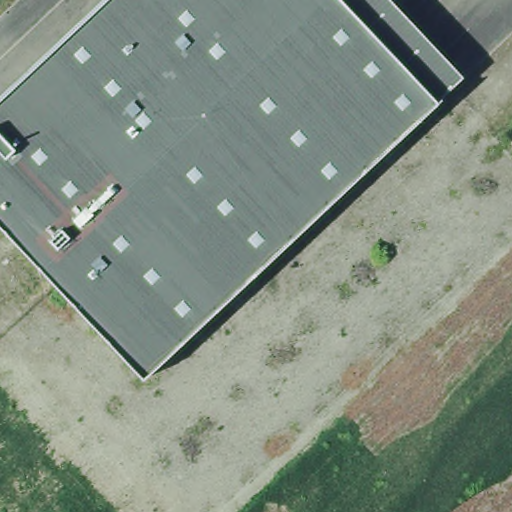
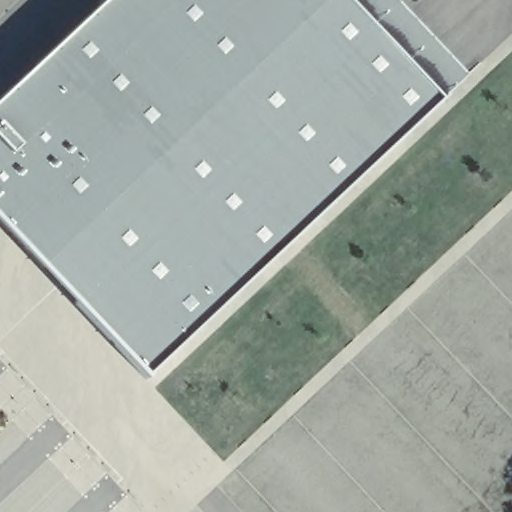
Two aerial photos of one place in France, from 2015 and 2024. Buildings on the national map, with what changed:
unchanged [(403,0),(472,77),(443,100),(143,378),(0,221),(0,101),(105,0),(403,0)]

